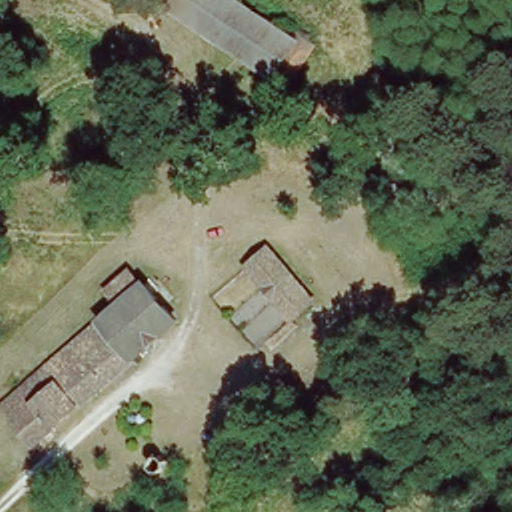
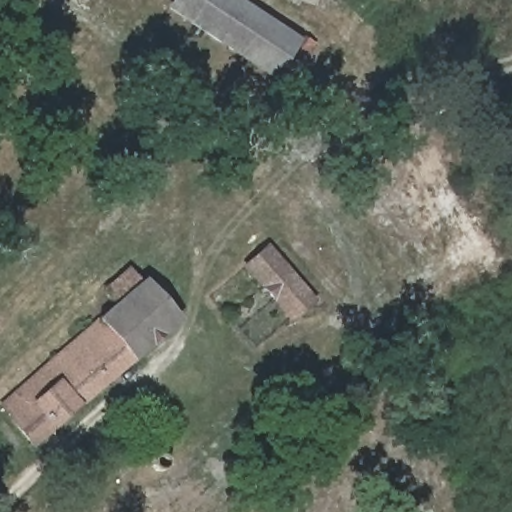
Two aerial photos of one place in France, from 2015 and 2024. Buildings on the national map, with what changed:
unchanged [(207,37),(169,11),(176,0),(230,0),(207,37)]
unchanged [(248,11),(253,15),(287,37),(301,40),(311,48),(306,57),(285,91),(207,37),(230,0),(233,0),(248,11)]
unchanged [(266,252),(311,300),(292,317),(248,270),(266,252)]
unchanged [(123,305),(111,292),(132,272),(144,285),(178,320),(39,450),(7,414),(123,305)]

